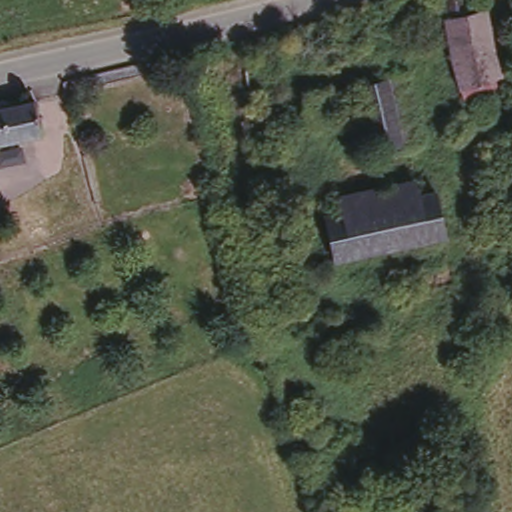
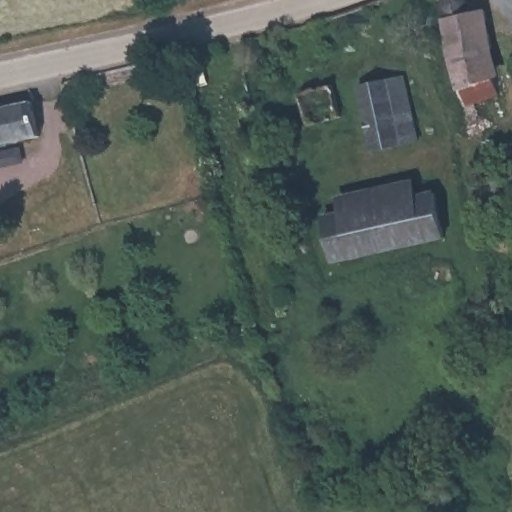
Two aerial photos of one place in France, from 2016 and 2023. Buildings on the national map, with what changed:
unchanged [(473,1),(477,0),(485,0),(493,37),(487,39),(498,82),(464,94),(441,9),(444,8),(442,0),(472,0),(473,1)]
unchanged [(404,68),(418,132),(374,141),(360,77),(404,68)]
unchanged [(334,88),(340,118),(309,127),(302,97),(334,88)]
unchanged [(46,126),(0,136),(0,100),(39,93),(46,126)]
unchanged [(394,238),(385,195),(437,182),(446,227),(404,236),(394,238)]
unchanged [(327,209),(385,195),(394,238),(337,252),(327,209)]

